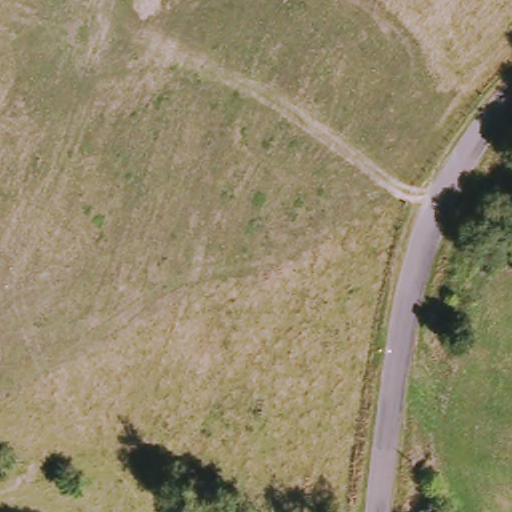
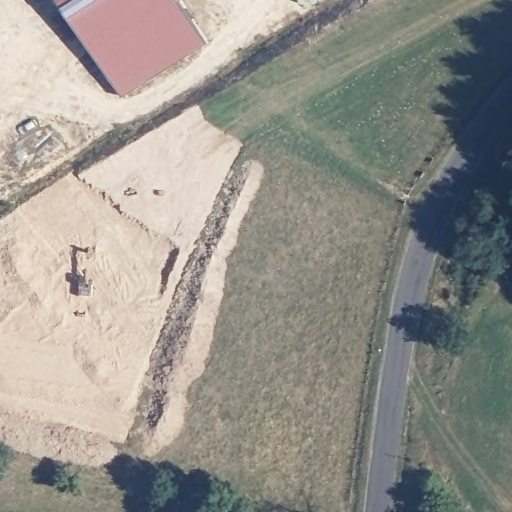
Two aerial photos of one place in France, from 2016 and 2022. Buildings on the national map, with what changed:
new [(123,94),(63,0),(181,0),(206,42),(123,94)]

